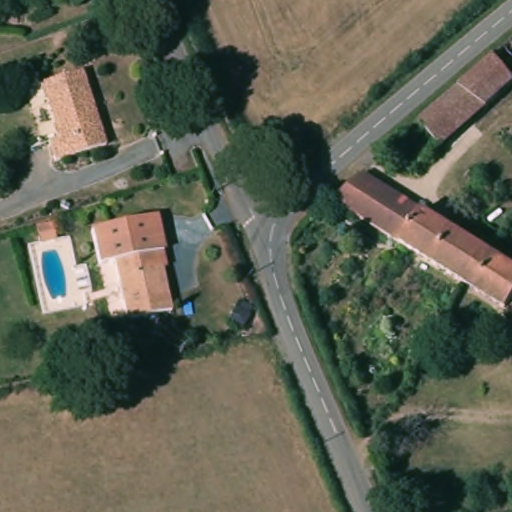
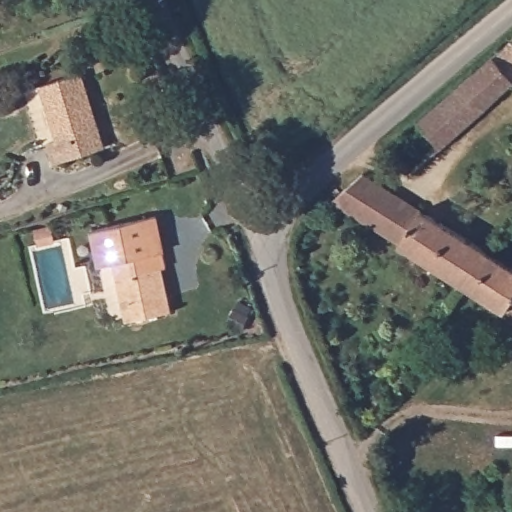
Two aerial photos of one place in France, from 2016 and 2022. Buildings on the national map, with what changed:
unchanged [(512,50),(498,61),(512,76),(512,85),(399,186),(380,168),(398,152),(390,143),(512,37),(512,50)]
unchanged [(52,164),(45,143),(55,140),(38,85),(81,71),(87,90),(99,127),(105,147),(52,164)]
unchanged [(361,164),(491,248),(466,284),(330,193),(361,164)]
unchanged [(112,261),(98,264),(91,229),(156,214),(165,249),(160,250),(163,263),(115,273),(112,261)]
unchanged [(491,248),(512,262),(512,314),(466,284),(491,248)]
unchanged [(127,333),(115,273),(163,263),(167,280),(163,281),(169,310),(172,324),(127,333)]

